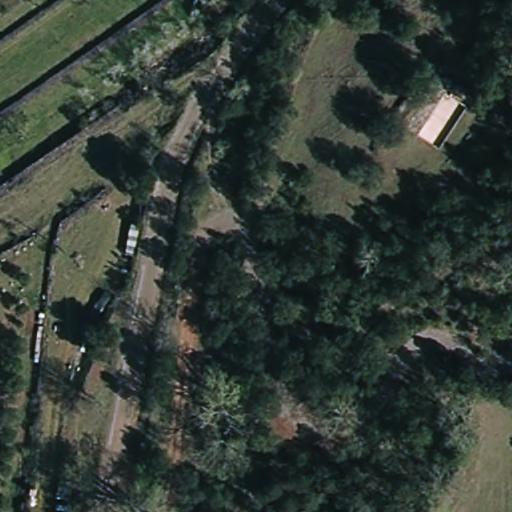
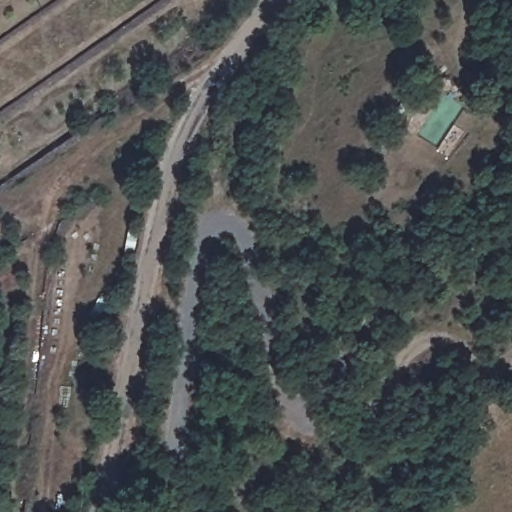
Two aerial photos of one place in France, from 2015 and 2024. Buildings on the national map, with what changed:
[]

